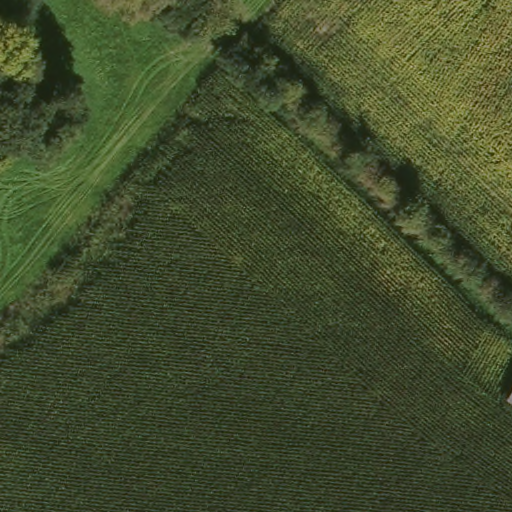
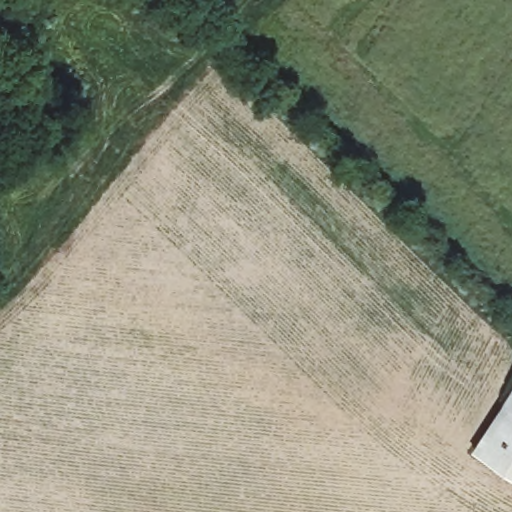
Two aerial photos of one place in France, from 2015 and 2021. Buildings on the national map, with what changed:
unchanged [(507,405),(512,397),(512,409),(507,405)]
new [(512,409),(512,476),(476,452),(507,405),(512,409)]

